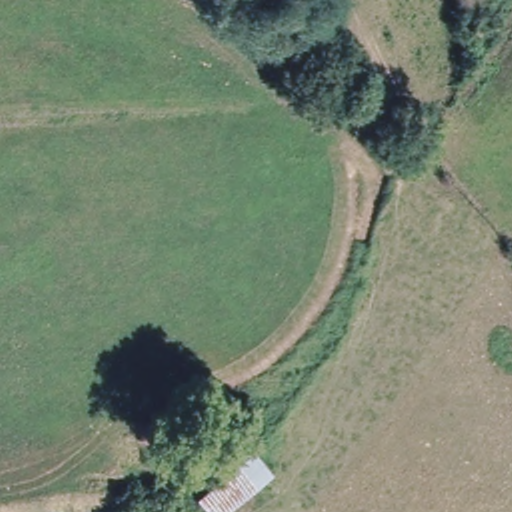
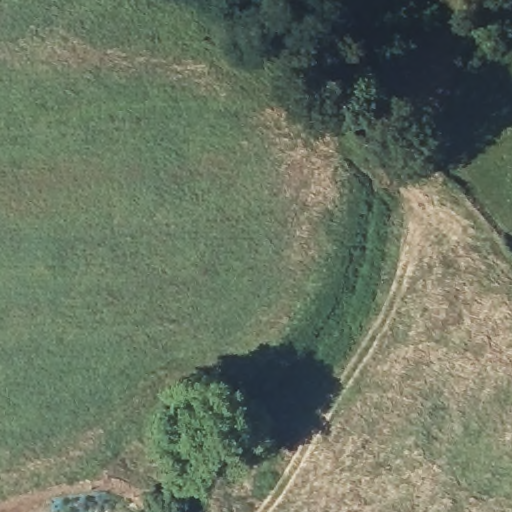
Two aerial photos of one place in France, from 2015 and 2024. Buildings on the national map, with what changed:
unchanged [(192,491),(250,446),(270,467),(214,512),(206,512),(192,491)]

